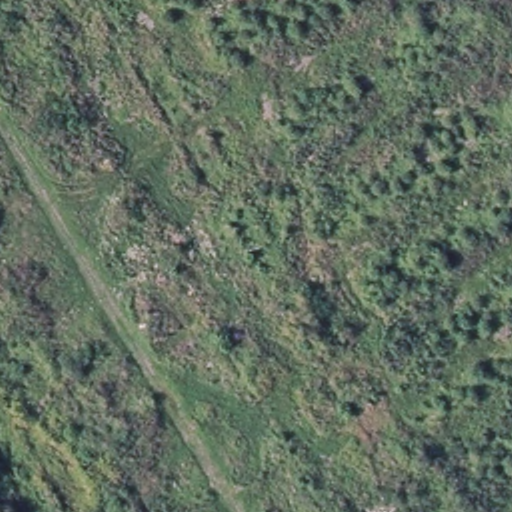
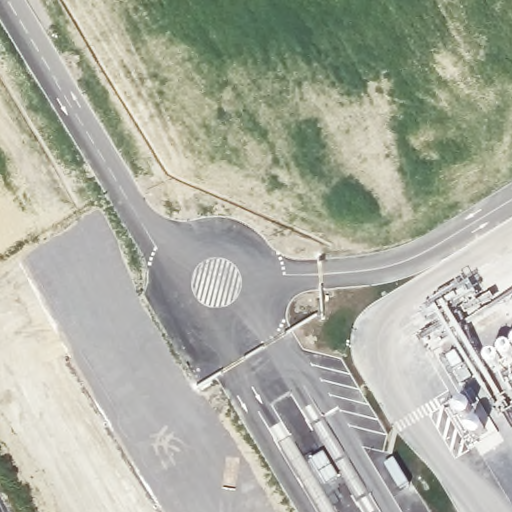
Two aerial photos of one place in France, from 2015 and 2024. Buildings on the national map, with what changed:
unchanged [(149,316),(152,321),(147,325),(144,319),(149,316)]

